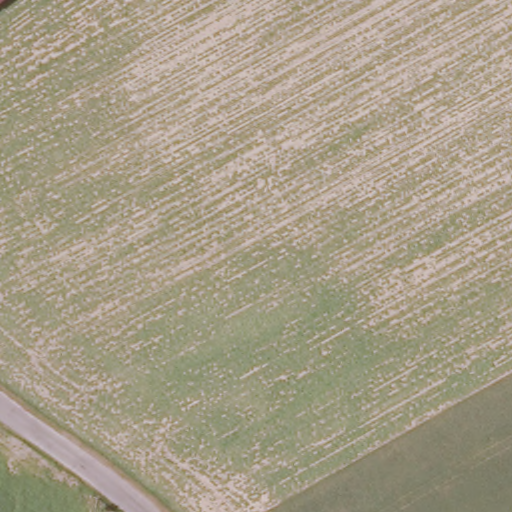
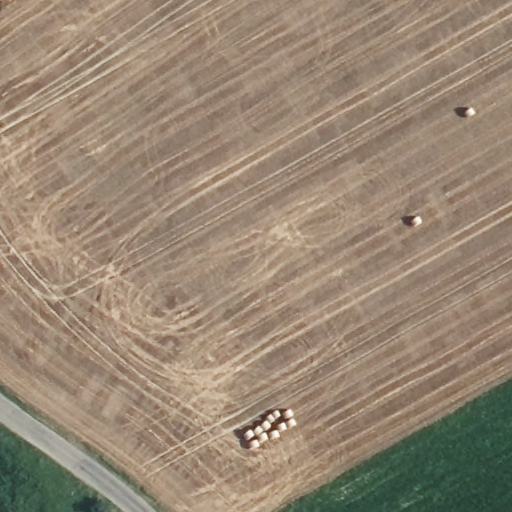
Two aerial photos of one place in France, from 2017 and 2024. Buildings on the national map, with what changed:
unchanged [(0,0),(3,0),(0,2),(0,0)]

